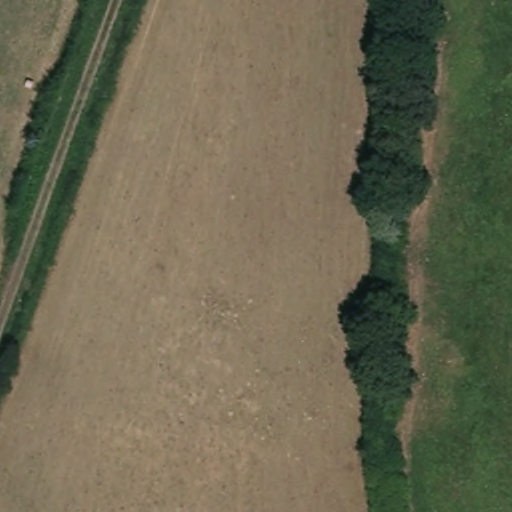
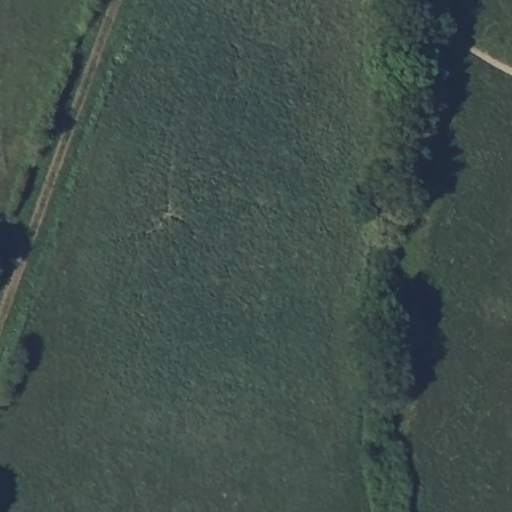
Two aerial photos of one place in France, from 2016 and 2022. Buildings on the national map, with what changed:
[]

